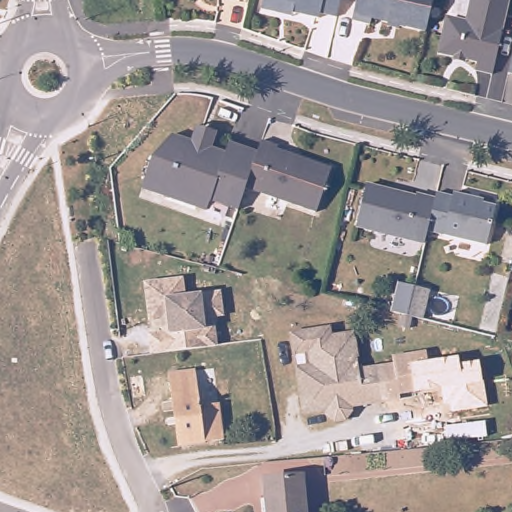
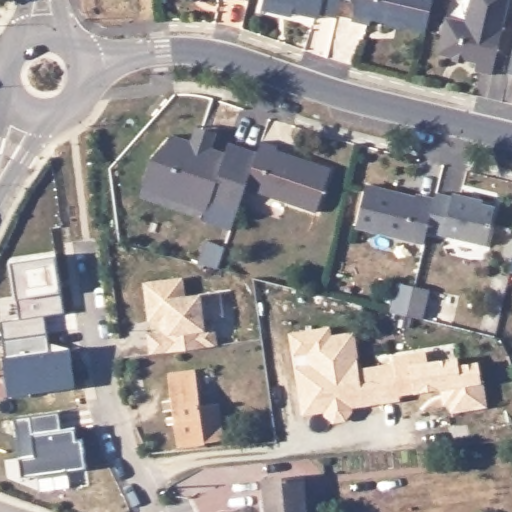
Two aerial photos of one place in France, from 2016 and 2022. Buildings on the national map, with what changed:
unchanged [(260,9),(262,0),(339,0),(335,17),(319,13),(317,18),(292,11),(291,16),(276,12),(260,9)]
unchanged [(370,18),(368,24),(351,19),(355,0),(432,0),(424,31),(370,18)]
unchanged [(452,61),(436,58),(443,26),(449,22),(464,26),(470,0),(508,0),(490,79),(473,75),(475,66),(463,64),(462,67),(451,65),(452,61)]
unchanged [(512,50),(512,73),(507,72),(512,50)]
unchanged [(194,207),(169,198),(140,189),(143,178),(150,158),(171,134),(190,141),(196,126),(216,133),(210,148),(225,153),(228,142),(257,152),(244,188),(239,204),(237,210),(208,200),(204,211),(194,207)]
unchanged [(276,150),(301,158),(330,168),(315,213),(244,188),(257,152),(260,141),(277,146),(276,150)]
unchanged [(355,224),(365,183),(391,190),(399,192),(415,195),(415,193),(433,197),(428,216),(428,218),(426,229),(423,241),(355,224)]
unchanged [(428,216),(433,197),(435,190),(451,194),(452,191),(472,195),(482,198),(481,201),(494,204),(485,243),(426,229),(428,218),(428,216)]
unchanged [(508,270),(512,255),(512,270),(509,270),(508,270)]
new [(4,339),(1,321),(21,319),(17,299),(12,263),(55,256),(60,292),(64,313),(44,316),(47,333),(4,339)]
unchanged [(151,321),(147,285),(183,281),(185,299),(216,295),(221,299),(222,313),(219,318),(203,319),(205,330),(215,328),(217,348),(152,356),(150,336),(166,334),(164,320),(151,321)]
unchanged [(397,283),(426,290),(420,318),(390,311),(397,283)]
unchanged [(300,389),(296,360),(294,346),(291,325),(330,320),(331,329),(353,326),(358,364),(376,361),(381,400),(362,402),(361,397),(348,399),(349,404),(343,412),(332,413),(325,407),(324,402),(317,403),(302,405),(300,389)]
unchanged [(134,331),(136,352),(122,354),(119,333),(134,331)]
new [(10,393),(4,339),(47,333),(49,351),(69,348),(74,384),(10,393)]
unchanged [(442,387),(398,392),(398,397),(381,400),(376,361),(393,359),(392,352),(410,350),(426,348),(427,360),(458,356),(459,364),(479,362),(484,406),(451,411),(450,402),(443,403),(442,387)]
unchanged [(222,441),(180,447),(171,374),(195,372),(200,407),(218,406),(222,441)]
new [(74,429),(81,471),(22,478),(15,418),(60,413),(61,431),(74,429)]
unchanged [(302,477),(306,512),(267,512),(264,480),(302,477)]

